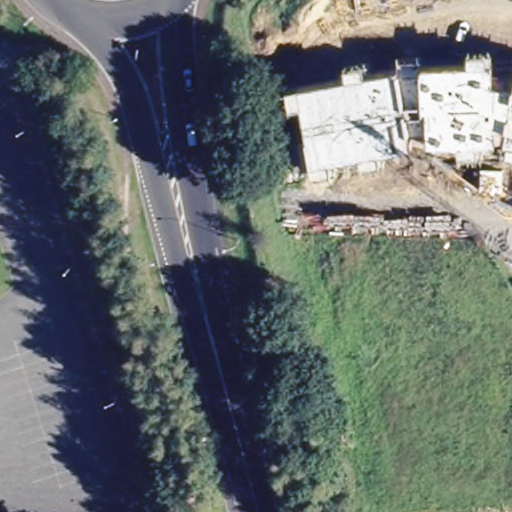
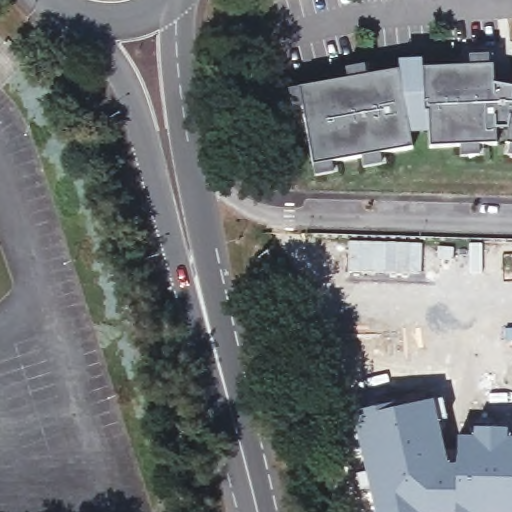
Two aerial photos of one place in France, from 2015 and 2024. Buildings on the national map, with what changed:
unchanged [(505,143),(506,138),(496,137),(496,142),(430,145),(429,129),(410,130),(412,146),(312,164),(299,89),(398,70),(422,68),(493,66),(493,85),(512,87),(512,145),(505,143)]
new [(381,406),(434,399),(448,460),(455,459),(456,436),(472,436),(472,427),(508,429),(508,436),(512,437),(512,512),(372,512),(367,487),(358,489),(355,474),(365,473),(349,413),(381,406)]

